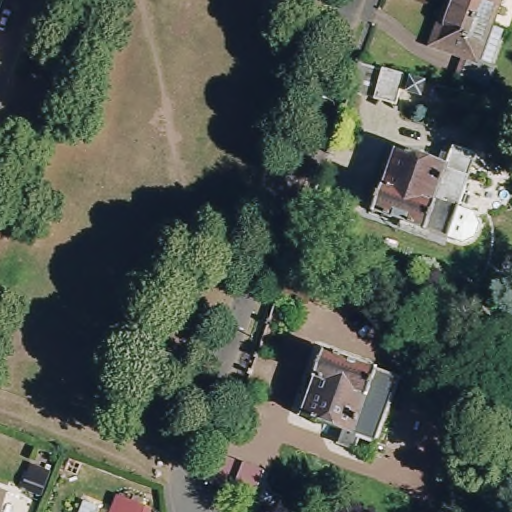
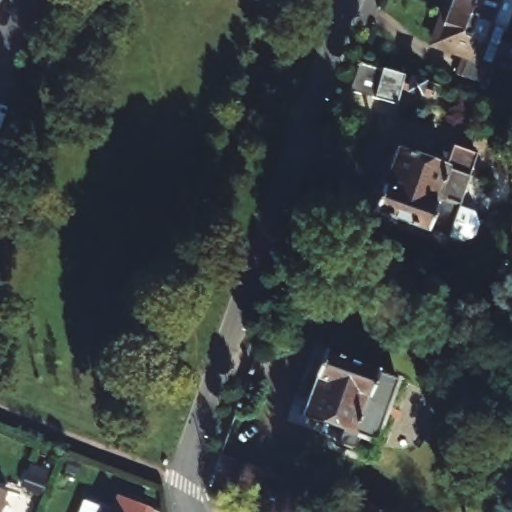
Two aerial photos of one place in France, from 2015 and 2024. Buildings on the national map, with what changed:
unchanged [(2,0),(0,7),(0,0),(2,0)]
unchanged [(449,0),(499,0),(490,24),(446,9),(449,0)]
unchanged [(490,24),(506,30),(493,65),(496,66),(490,85),(460,74),(466,55),(435,44),(446,9),(490,24)]
unchanged [(481,106),(435,94),(425,91),(424,94),(398,86),(393,103),(375,98),(381,69),(437,85),(485,98),(481,106)]
unchanged [(446,242),(370,215),(378,190),(382,191),(396,154),(435,168),(440,155),(450,158),(453,151),(477,159),(446,242)]
unchanged [(398,378),(376,442),(362,436),(356,449),(340,442),(344,429),(305,414),(319,374),(316,373),(325,350),(398,378)]
unchanged [(20,485),(29,462),(48,469),(39,493),(20,485)]
unchanged [(243,464),(263,471),(257,489),(282,499),(279,508),(233,490),(243,464)]
unchanged [(10,482),(1,512),(0,512),(0,479),(10,482)]
unchanged [(123,494),(151,505),(149,512),(117,512),(123,494)]
unchanged [(87,503),(102,509),(101,512),(83,512),(87,503)]

